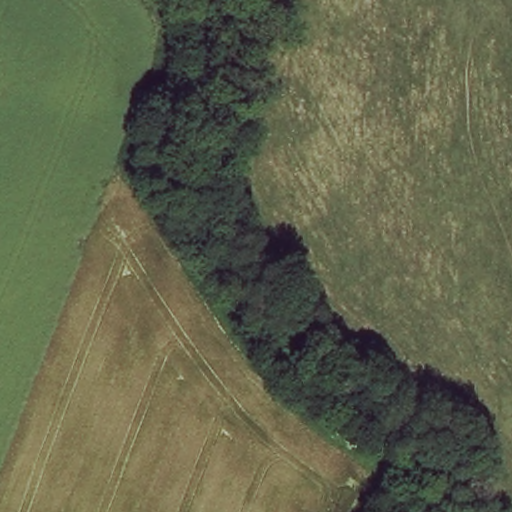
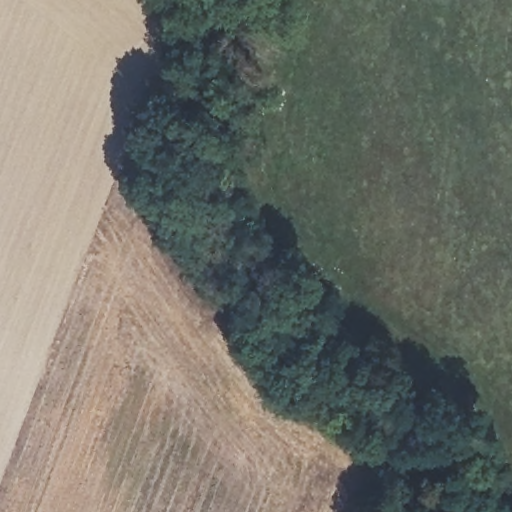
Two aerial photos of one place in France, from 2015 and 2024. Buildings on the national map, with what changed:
[]

